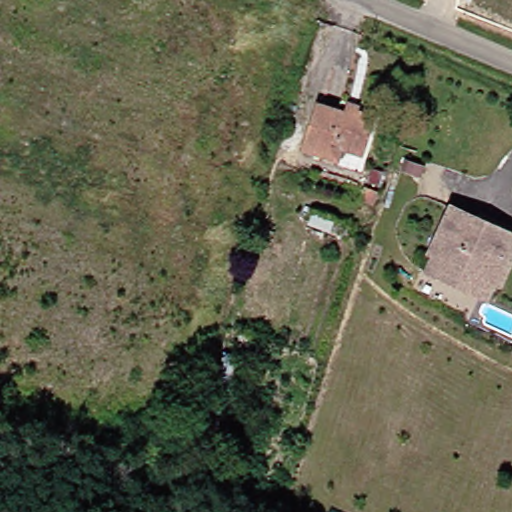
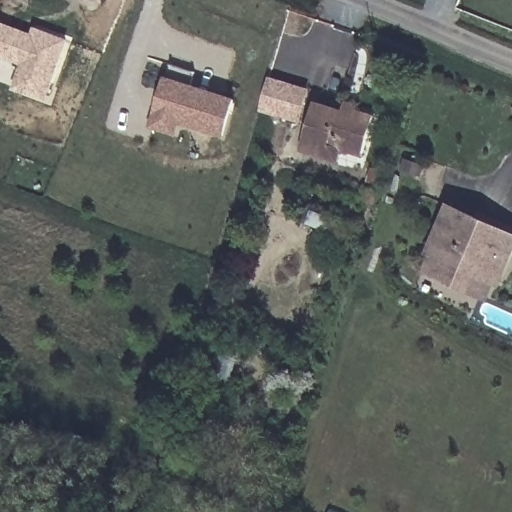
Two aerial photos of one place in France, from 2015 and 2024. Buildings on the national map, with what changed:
new [(28,36),(30,30),(64,41),(45,101),(12,89),(20,67),(0,59),(0,25),(28,36)]
new [(164,82),(168,67),(192,75),(188,88),(232,101),(222,136),(178,124),(174,136),(151,130),(154,117),(164,82)]
unchanged [(311,153),(291,145),(309,100),(338,112),(342,101),(354,106),(352,111),(367,117),(352,156),(331,147),(326,159),(311,153)]
unchanged [(512,232),(512,252),(502,272),(497,282),(492,281),(432,250),(427,247),(431,241),(451,202),(512,232)]
unchanged [(484,297),(424,267),(432,250),(492,281),(484,297)]

